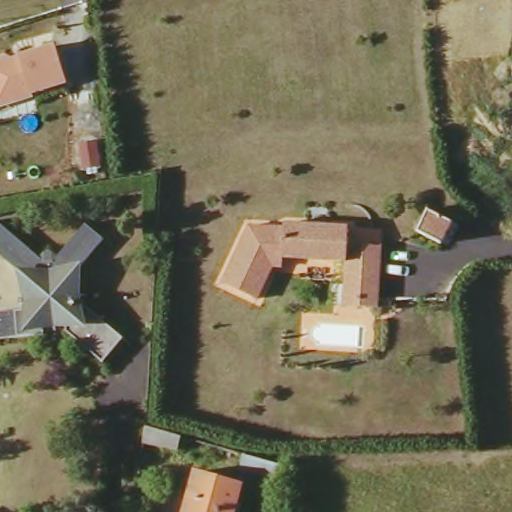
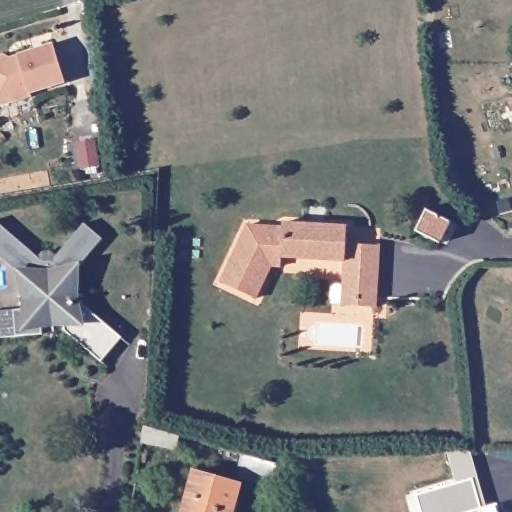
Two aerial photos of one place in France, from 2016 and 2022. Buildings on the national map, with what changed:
unchanged [(8,59),(10,64),(17,61),(16,56),(52,45),(64,82),(43,88),(44,91),(14,101),(0,105),(0,57),(2,56),(8,59)]
unchanged [(94,139),(98,164),(82,166),(77,141),(94,139)]
unchanged [(426,206),(451,219),(439,241),(415,229),(426,206)]
unchanged [(339,283),(340,259),(277,255),(276,264),(266,265),(261,276),(252,297),(217,282),(242,224),(277,227),(277,221),(342,224),(342,242),(374,243),(372,304),(354,304),(337,303),(339,283)]
unchanged [(20,316),(19,308),(13,307),(12,298),(17,298),(15,274),(0,261),(0,230),(36,262),(48,262),(81,223),(98,238),(70,272),(72,294),(122,338),(98,365),(59,331),(58,327),(37,329),(37,339),(9,341),(0,342),(0,317),(8,316),(20,316)]
unchanged [(142,425),(178,435),(174,450),(141,441),(142,425)]
new [(412,492),(451,480),(441,447),(465,447),(481,504),(492,501),(495,512),(418,512),(412,492)]
unchanged [(194,472),(234,484),(225,512),(182,512),(194,472)]

